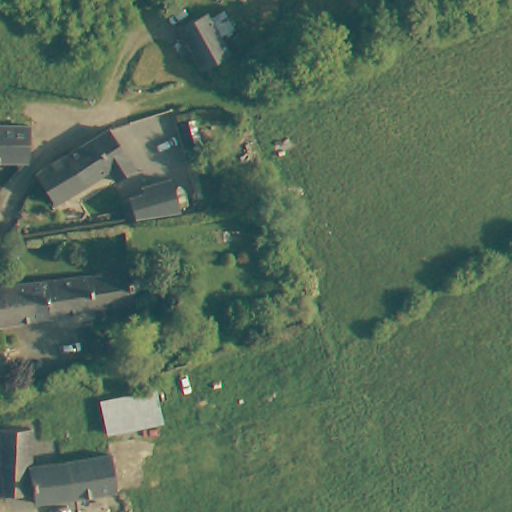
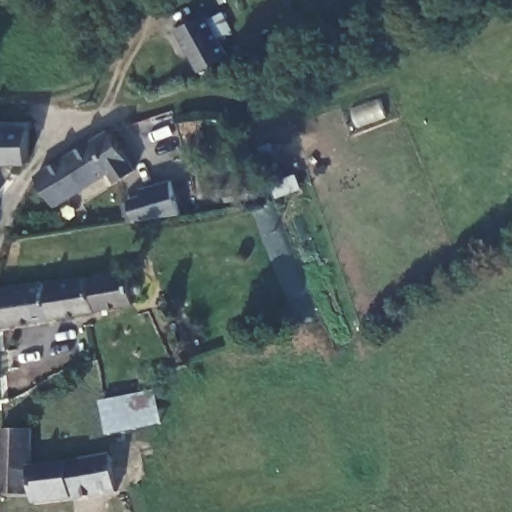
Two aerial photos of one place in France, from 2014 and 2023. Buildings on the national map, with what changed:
unchanged [(209,8),(232,49),(225,53),(229,69),(213,74),(205,65),(184,22),(209,8)]
unchanged [(0,164),(0,127),(27,125),(29,162),(0,164)]
unchanged [(49,205),(43,192),(34,176),(56,161),(103,138),(118,131),(138,175),(114,186),(109,175),(98,181),(49,205)]
unchanged [(149,189),(173,177),(187,209),(139,218),(133,204),(151,195),(149,189)]
unchanged [(119,274),(121,281),(130,280),(136,283),(138,288),(138,292),(134,299),(125,302),(125,307),(87,313),(83,281),(119,274)]
unchanged [(83,281),(87,313),(0,327),(0,294),(41,287),(83,281)]
unchanged [(38,423),(37,464),(35,490),(4,490),(4,421),(38,423)]
unchanged [(119,450),(123,487),(79,493),(74,457),(119,450)]
unchanged [(74,457),(79,493),(41,498),(37,464),(74,457)]

